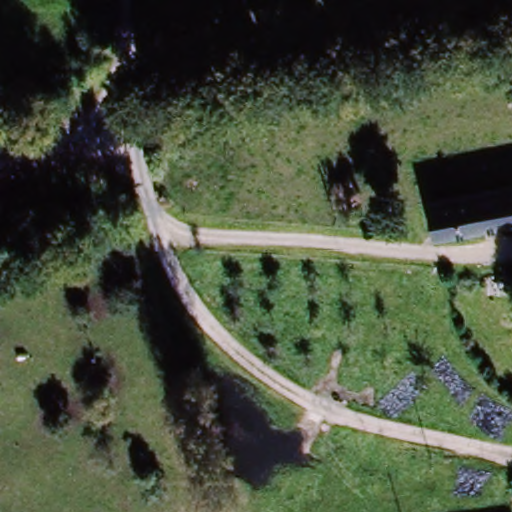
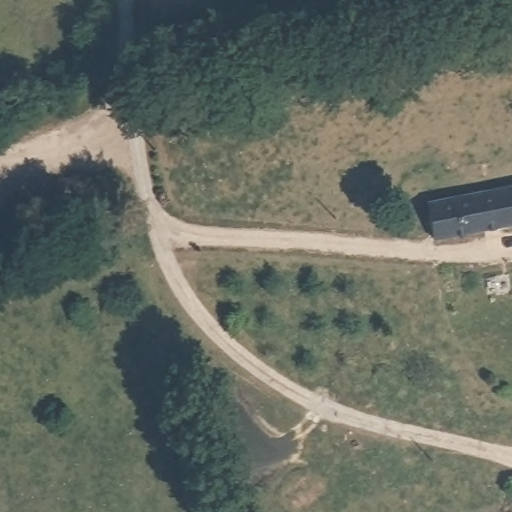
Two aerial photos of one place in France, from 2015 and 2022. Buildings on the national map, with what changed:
unchanged [(426,212),(512,194),(512,228),(434,244),(426,212)]

